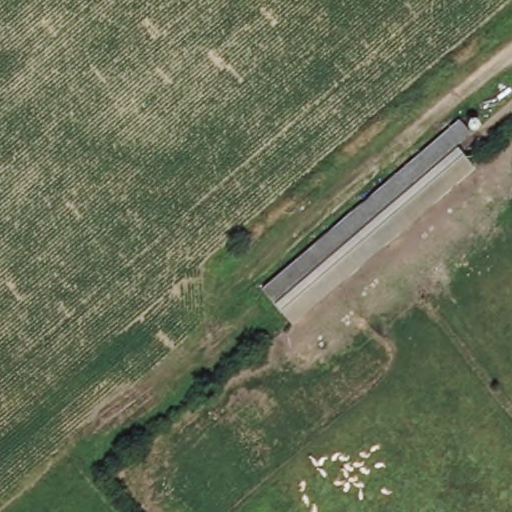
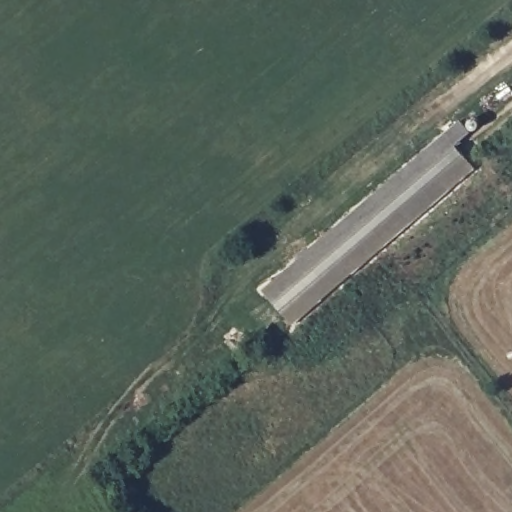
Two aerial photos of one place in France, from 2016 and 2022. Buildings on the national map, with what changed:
unchanged [(474,136),(457,150),(476,170),(296,325),(267,293),(461,122),(474,136)]

